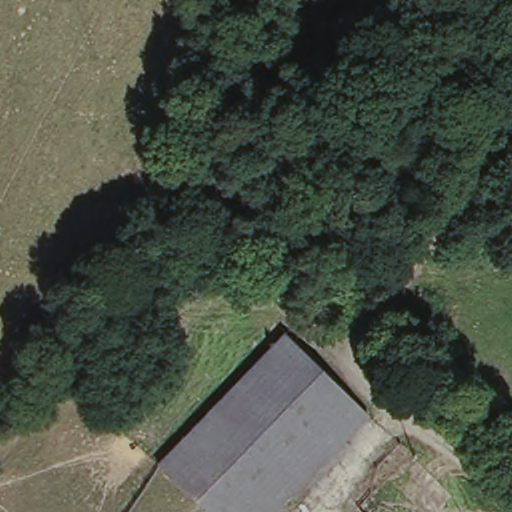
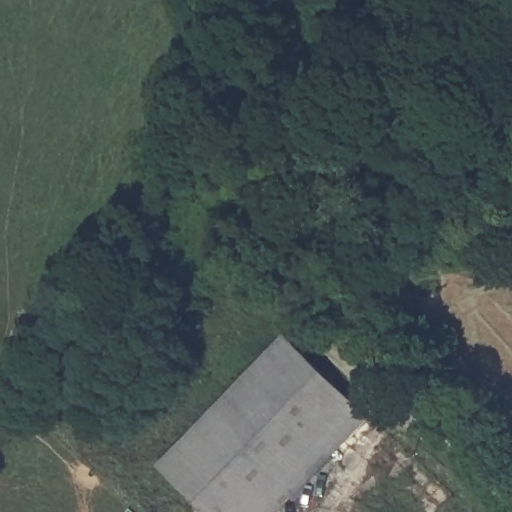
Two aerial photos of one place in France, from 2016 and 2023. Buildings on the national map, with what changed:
unchanged [(280,512),(206,512),(156,463),(286,334),(372,420),(280,512)]

